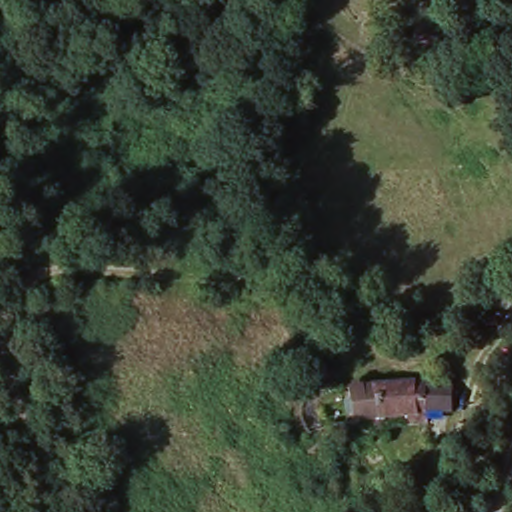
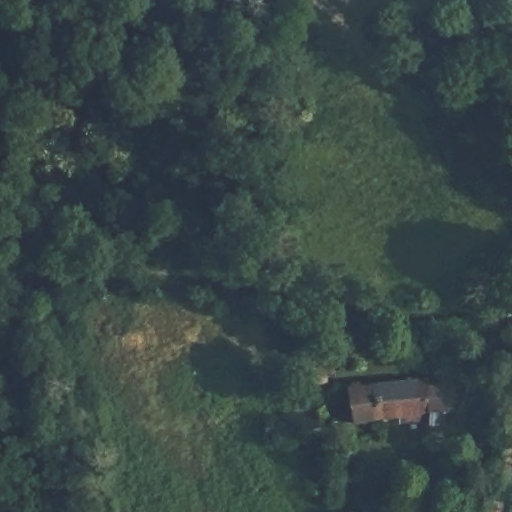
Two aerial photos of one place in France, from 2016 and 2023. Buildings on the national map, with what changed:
unchanged [(414,380),(417,388),(433,388),(433,412),(414,411),(412,418),(384,417),(363,421),(361,387),(414,380)]

